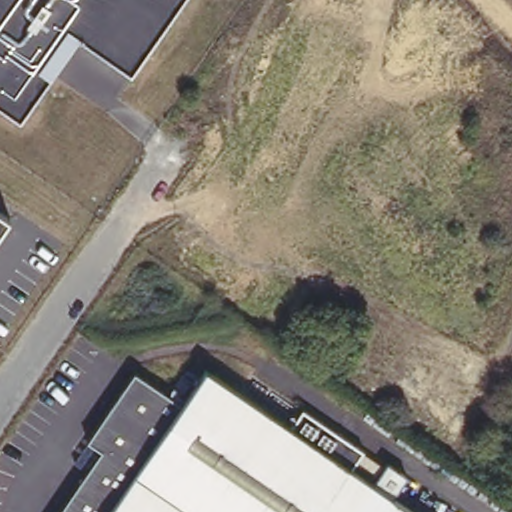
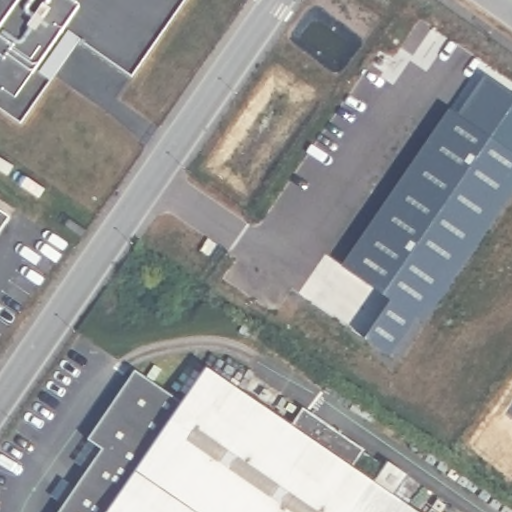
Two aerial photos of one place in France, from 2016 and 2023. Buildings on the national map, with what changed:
unchanged [(80,36),(21,120),(0,105),(0,0),(181,0),(132,72),(80,36)]
new [(364,339),(390,300),(343,264),(477,71),(512,94),(512,185),(394,361),(364,339)]
unchanged [(0,225),(0,206),(9,212),(0,225)]
unchanged [(99,446),(85,436),(132,367),(179,399),(203,365),(287,423),(300,405),(360,447),(348,465),(415,512),(53,512),(99,446)]
unchanged [(378,463),(372,472),(354,460),(360,450),(378,463)]

